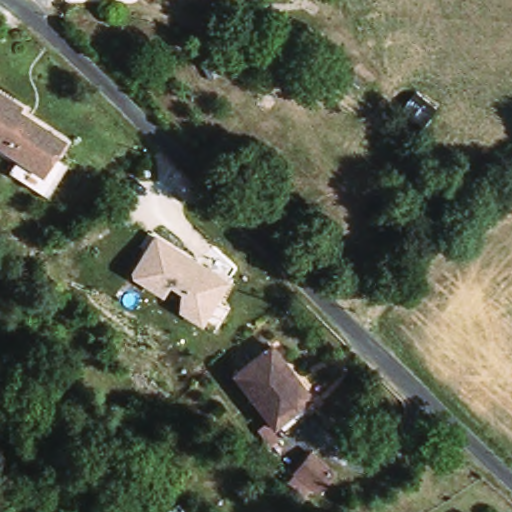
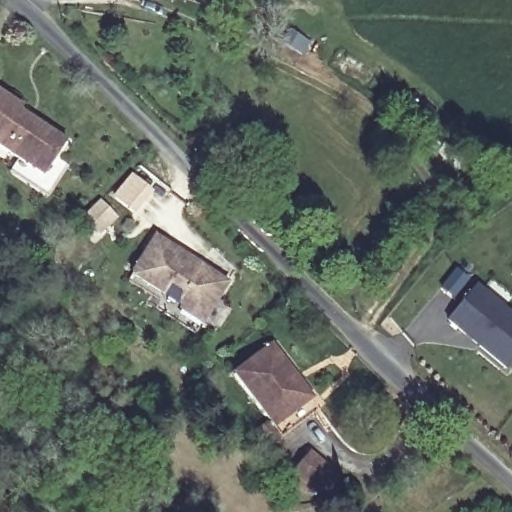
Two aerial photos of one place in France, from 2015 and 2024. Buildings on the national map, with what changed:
unchanged [(58,156),(67,161),(56,180),(49,192),(10,169),(17,157),(0,146),(0,94),(18,105),(15,109),(21,112),(30,118),(67,141),(58,156)]
unchanged [(180,312),(180,291),(170,285),(162,296),(128,275),(155,234),(232,281),(204,327),(180,312)]
new [(477,285),(512,313),(512,361),(505,369),(447,322),(477,285)]
unchanged [(278,434),(270,420),(234,370),(270,344),(307,397),(300,401),(308,413),(278,434)]
unchanged [(333,474),(318,496),(296,476),(312,456),(333,474)]

